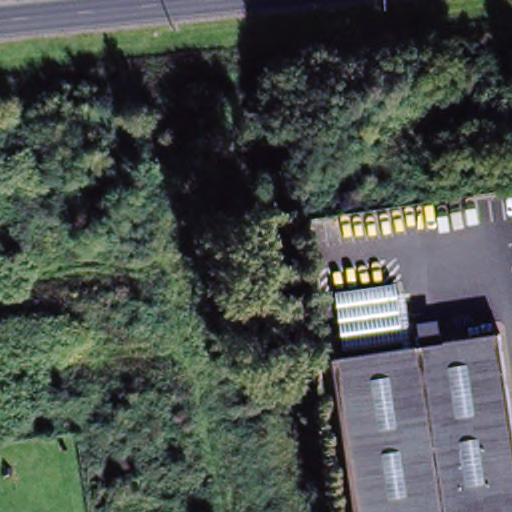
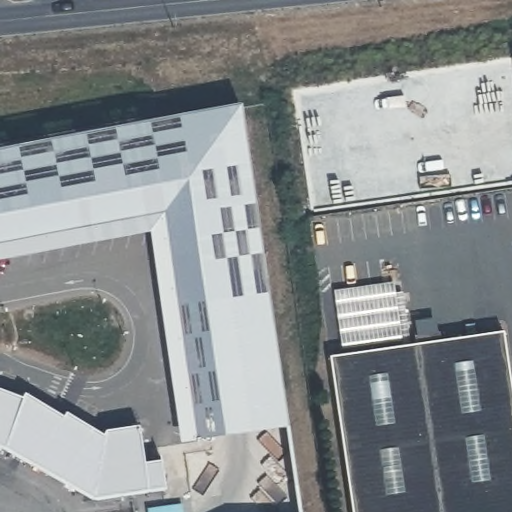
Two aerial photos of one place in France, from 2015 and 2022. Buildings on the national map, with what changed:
new [(195,440),(162,215),(0,245),(0,151),(238,108),(285,428),(195,440)]
unchanged [(501,333),(512,405),(512,512),(350,512),(326,358),(501,333)]
new [(93,501),(90,500),(1,449),(0,449),(0,392),(20,400),(23,395),(63,418),(65,413),(102,436),(104,431),(135,426),(141,463),(157,460),(162,490),(145,492),(93,501)]

